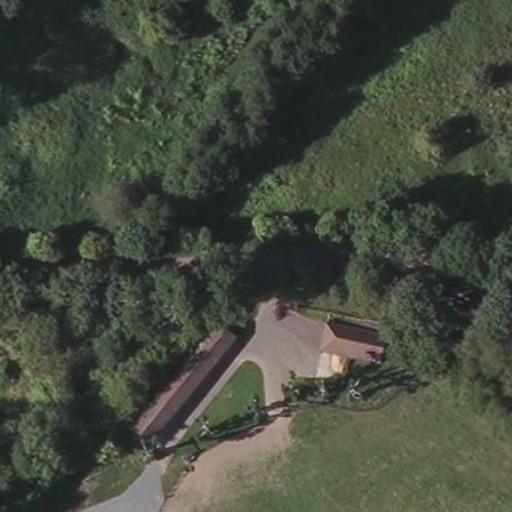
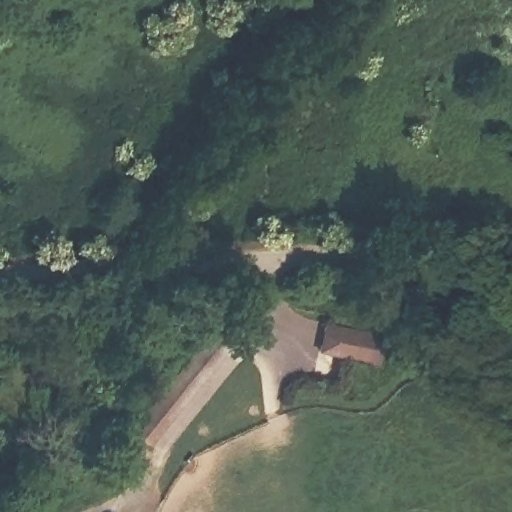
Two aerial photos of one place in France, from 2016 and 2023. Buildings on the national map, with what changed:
unchanged [(231,338),(148,442),(131,428),(212,323),(231,338)]
unchanged [(383,361),(322,356),(326,335),(386,340),(383,361)]

